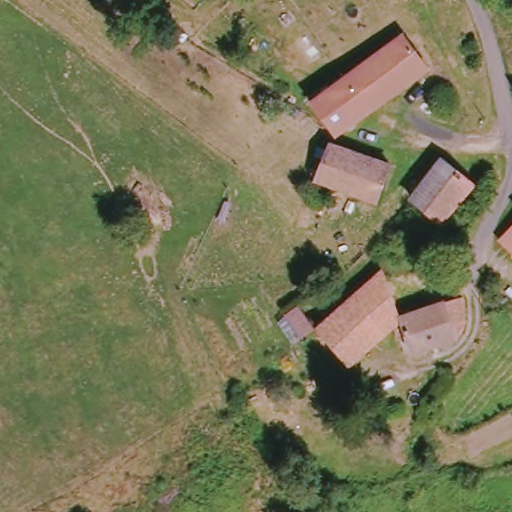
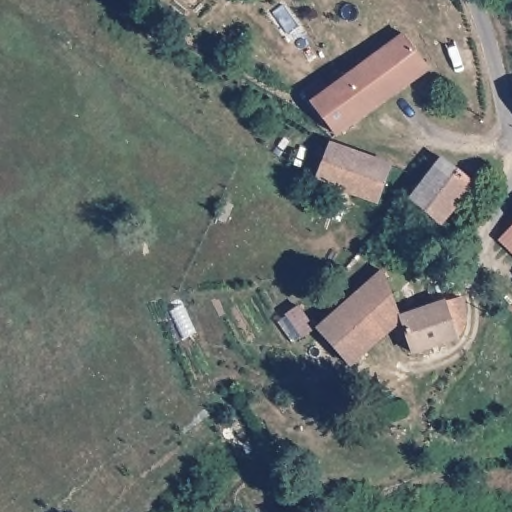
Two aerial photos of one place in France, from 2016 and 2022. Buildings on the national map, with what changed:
unchanged [(308,105),(401,33),(425,68),(329,136),(308,105)]
unchanged [(390,166),(377,199),(317,177),(330,144),(390,166)]
unchanged [(438,220),(410,195),(435,163),(441,154),(472,182),(438,220)]
unchanged [(511,229),(512,228),(512,231),(511,229)]
unchanged [(461,323),(454,337),(407,352),(403,336),(391,332),(350,371),(321,334),(387,275),(401,322),(461,303),(461,323)]
unchanged [(302,310),(317,334),(304,343),(288,320),(302,310)]

